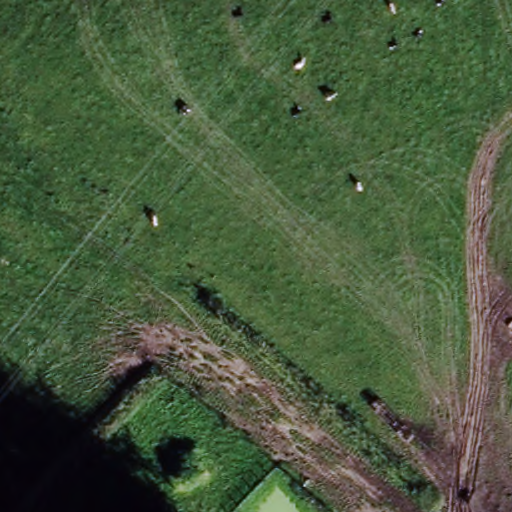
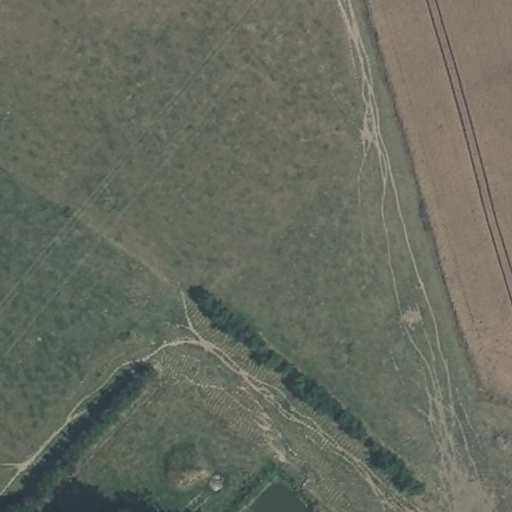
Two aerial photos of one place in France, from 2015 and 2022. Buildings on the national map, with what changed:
[]

